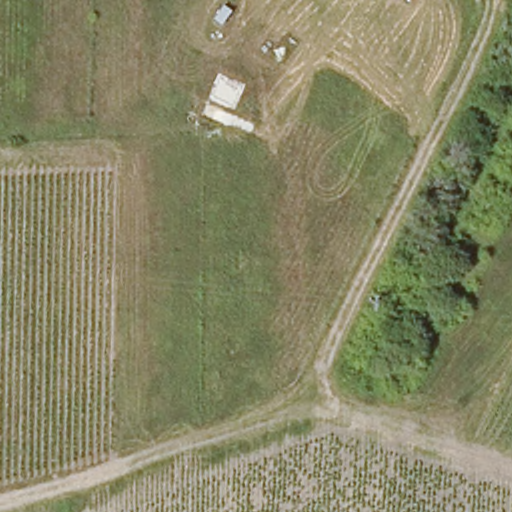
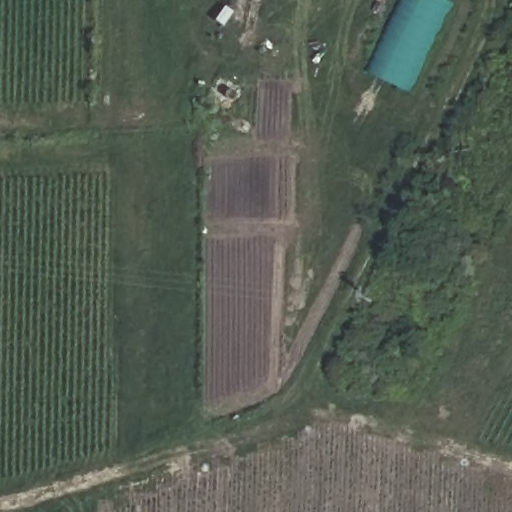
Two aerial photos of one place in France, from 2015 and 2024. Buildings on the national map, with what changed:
new [(412,95),(369,75),(404,0),(445,0),(457,5),(412,95)]

